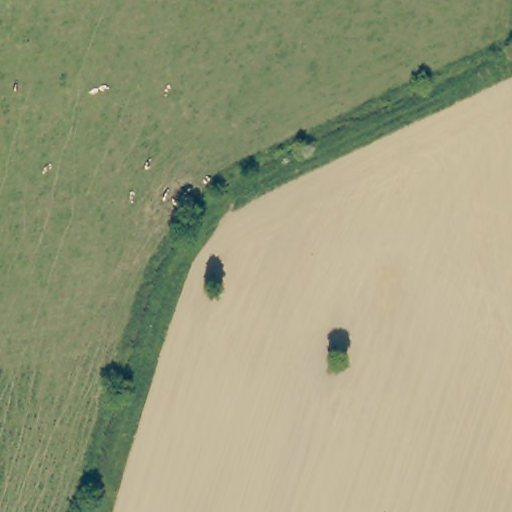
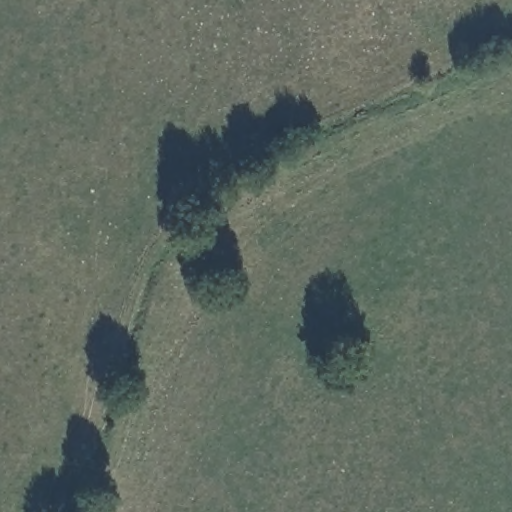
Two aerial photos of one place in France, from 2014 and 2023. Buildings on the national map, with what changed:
[]

